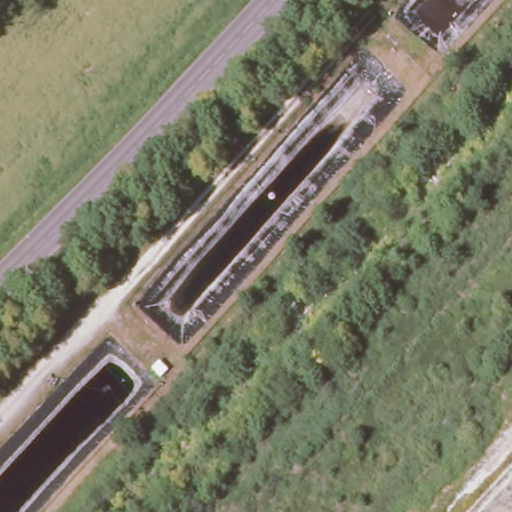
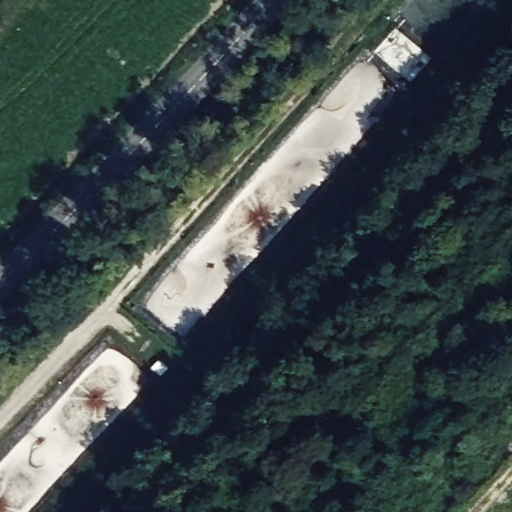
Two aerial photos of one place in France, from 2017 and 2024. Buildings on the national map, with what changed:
[]

